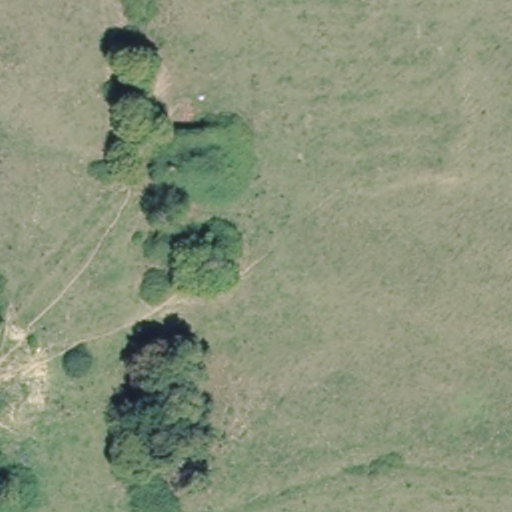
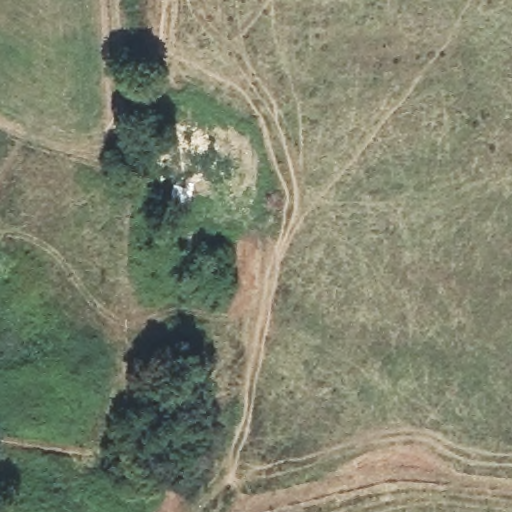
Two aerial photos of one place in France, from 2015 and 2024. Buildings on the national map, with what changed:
unchanged [(206,133),(207,184),(177,186),(173,135),(206,133)]

